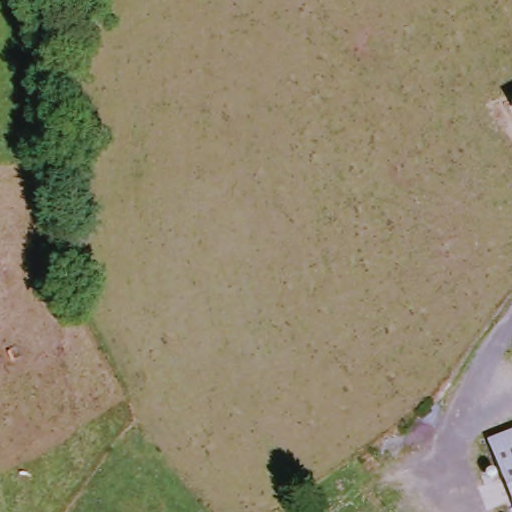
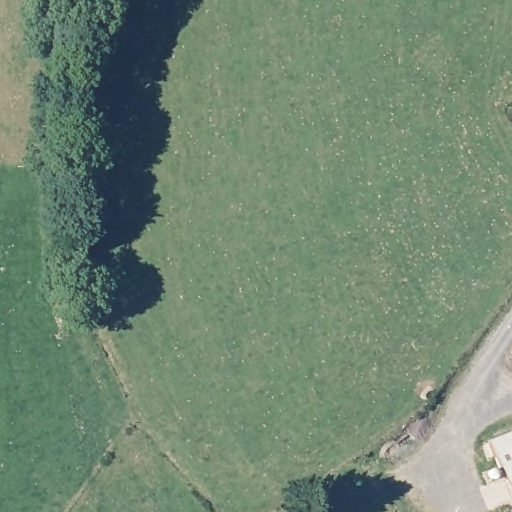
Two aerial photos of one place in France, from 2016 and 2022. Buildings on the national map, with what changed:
unchanged [(512,105),(512,109),(510,106),(512,105)]
unchanged [(512,437),(512,496),(490,447),(512,437)]

